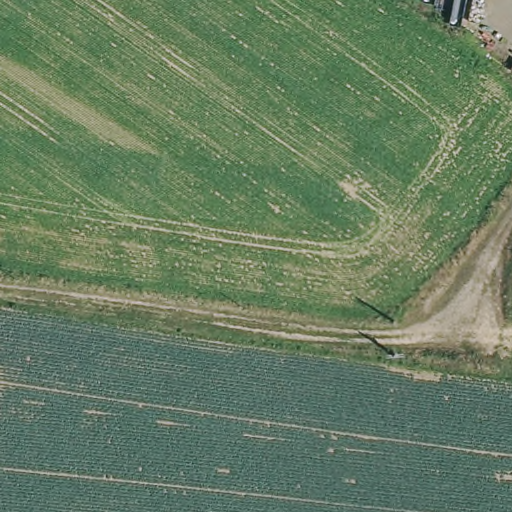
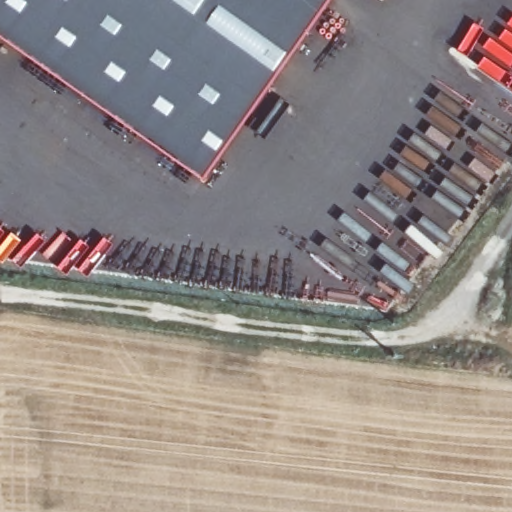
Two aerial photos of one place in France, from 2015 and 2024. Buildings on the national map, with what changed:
new [(329,0),(206,173),(0,34),(0,0),(329,0)]

